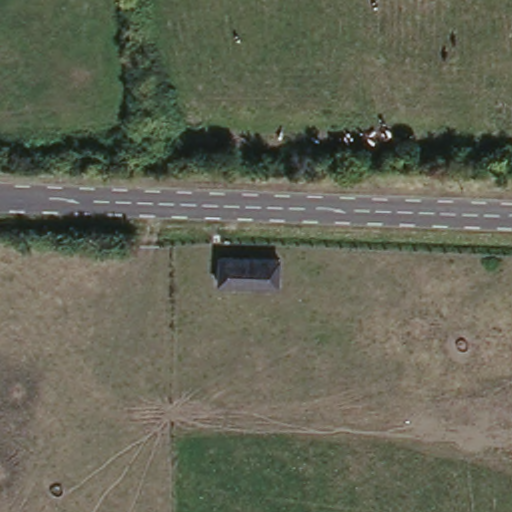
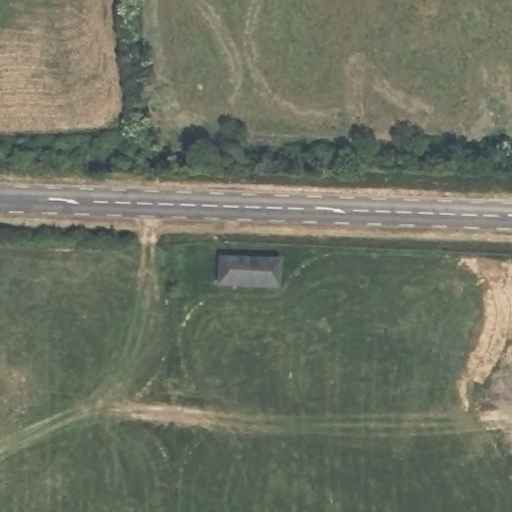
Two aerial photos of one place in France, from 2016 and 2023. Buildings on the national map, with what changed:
unchanged [(282,261),(282,289),(217,287),(219,259),(282,261)]

